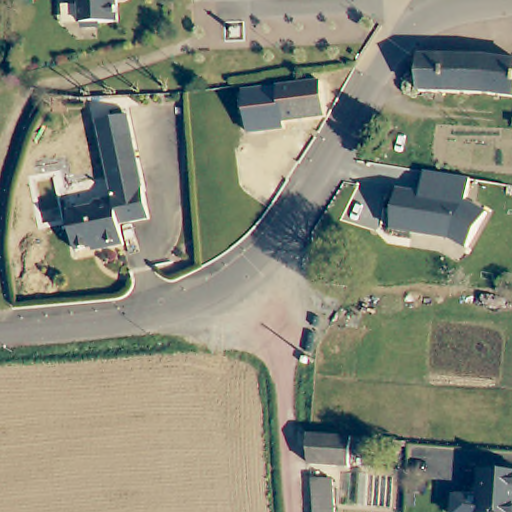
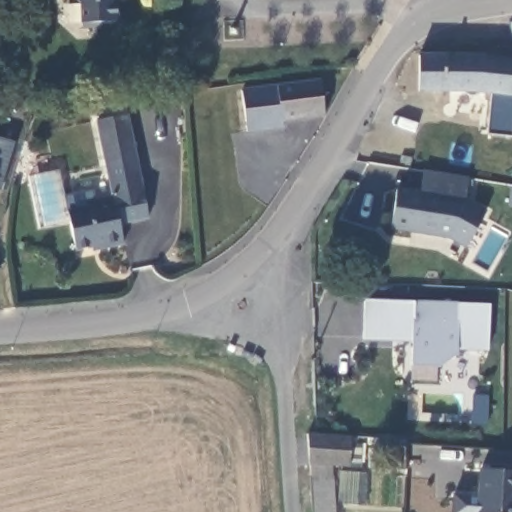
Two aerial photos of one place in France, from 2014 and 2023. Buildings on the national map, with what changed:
unchanged [(112,27),(95,28),(91,33),(80,33),(76,29),(75,11),(68,5),(68,0),(110,0),(112,27)]
unchanged [(474,98),(416,95),(418,59),(479,63),(512,67),(512,105),(474,98)]
unchanged [(258,96),(322,85),(327,118),(264,129),(258,96)]
unchanged [(101,250),(74,255),(66,217),(90,212),(95,206),(113,203),(96,126),(127,120),(147,223),(118,229),(123,249),(102,254),(101,250)]
unchanged [(471,182),(467,204),(488,216),(468,251),(451,241),(393,232),(399,194),(422,197),(425,175),(471,182)]
new [(489,351),(457,349),(458,354),(439,369),(412,366),(413,342),(363,340),(364,298),(491,304),(489,351)]
unchanged [(347,470),(308,466),(306,437),(349,440),(347,470)]
unchanged [(450,512),(451,498),(476,500),(478,472),(512,475),(512,512),(450,512)]
unchanged [(334,483),(337,512),(316,512),(313,482),(334,483)]

